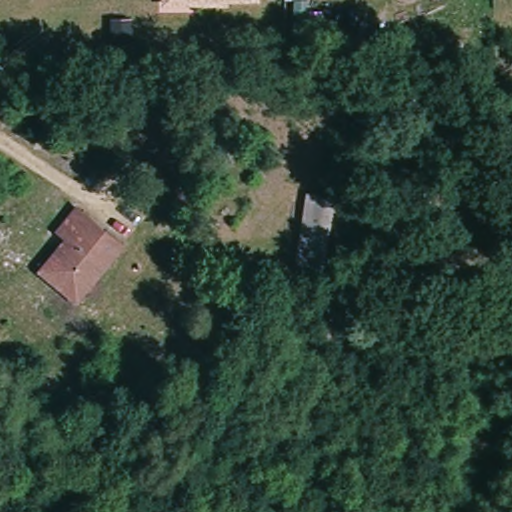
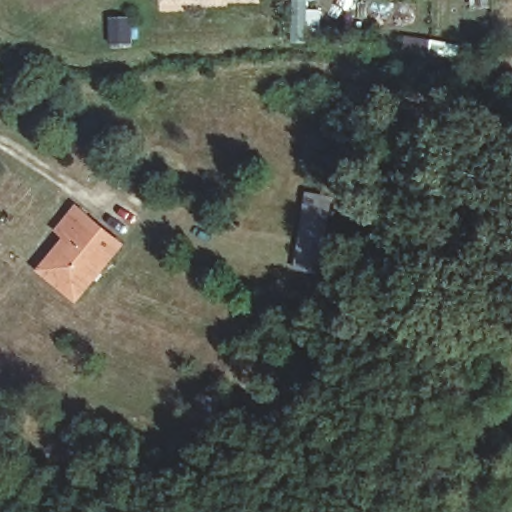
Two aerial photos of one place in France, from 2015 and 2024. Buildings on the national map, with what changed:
unchanged [(321,5),(320,32),(292,30),(293,0),(307,0),(307,5),(321,5)]
unchanged [(335,199),(321,274),(293,269),(303,194),(335,199)]
unchanged [(81,308),(37,270),(65,238),(55,229),(75,205),(132,246),(81,308)]

